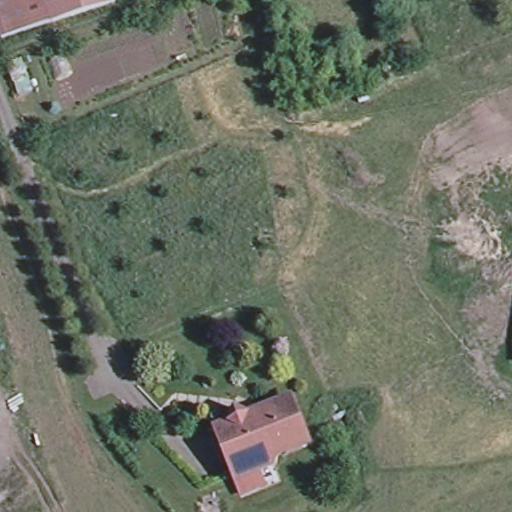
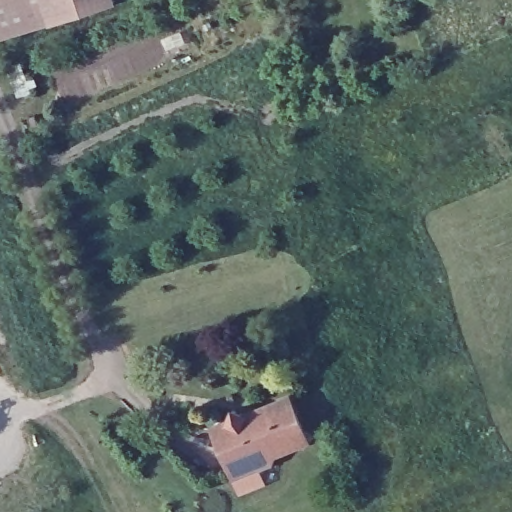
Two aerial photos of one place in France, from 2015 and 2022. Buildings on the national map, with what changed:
unchanged [(45,27),(1,39),(0,35),(0,0),(37,0),(45,27)]
unchanged [(113,3),(49,23),(42,0),(113,0),(113,3)]
unchanged [(227,471),(210,428),(227,422),(231,408),(247,413),(287,397),(303,440),(273,452),(267,461),(250,468),(230,477),(227,471)]

